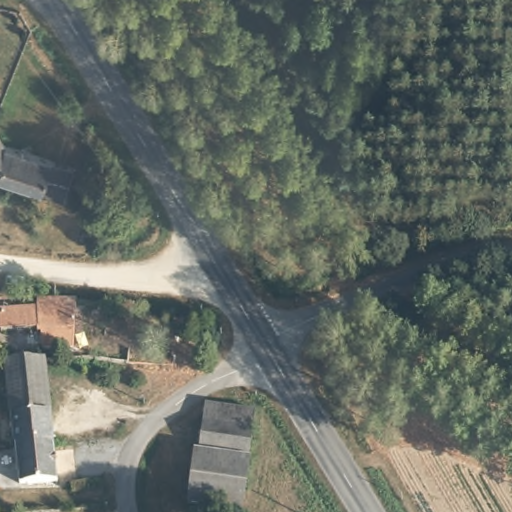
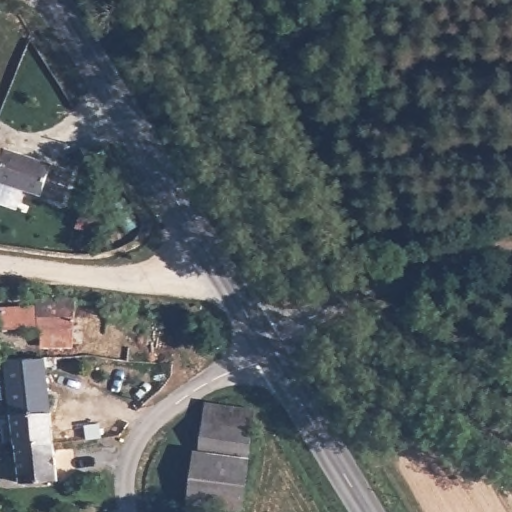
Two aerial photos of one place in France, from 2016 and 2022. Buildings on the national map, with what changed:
unchanged [(9,152),(74,173),(63,204),(0,186),(0,138),(9,152)]
unchanged [(75,296),(79,338),(41,341),(40,331),(0,334),(0,329),(0,308),(37,305),(38,298),(75,296)]
unchanged [(55,445),(11,449),(4,363),(46,360),(55,445)]
unchanged [(254,430),(206,425),(209,401),(256,408),(254,430)]
unchanged [(250,458),(203,452),(206,425),(254,430),(250,458)]
unchanged [(57,475),(14,478),(11,449),(55,445),(57,475)]
unchanged [(249,462),(243,512),(239,512),(189,506),(196,456),(249,462)]

